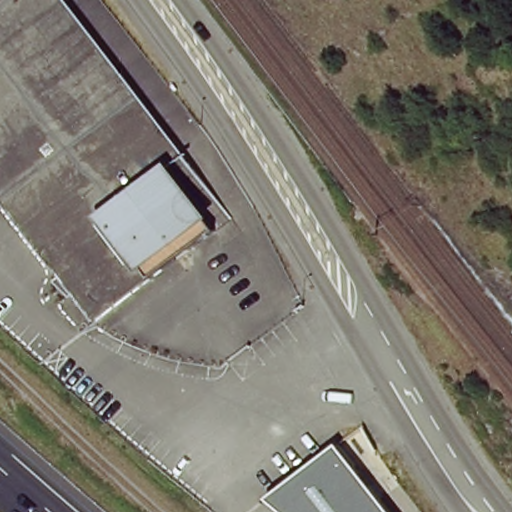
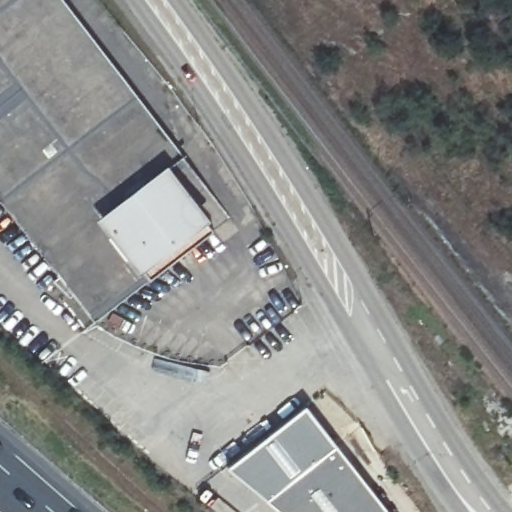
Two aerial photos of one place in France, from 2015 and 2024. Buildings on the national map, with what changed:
unchanged [(229,230),(87,323),(68,295),(65,297),(49,281),(55,276),(2,196),(0,198),(0,0),(76,0),(229,230)]
new [(231,467),(308,406),(343,449),(271,501),(231,467)]
demolished [(512,432),(502,438),(492,423),(505,414),(512,424),(512,432)]
unchanged [(284,512),(271,501),(343,449),(393,512),(284,512)]

